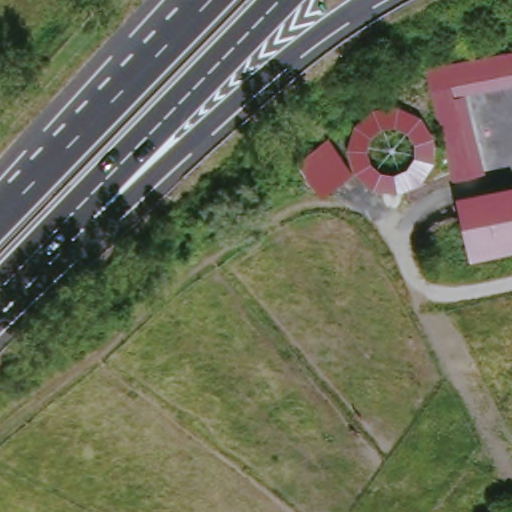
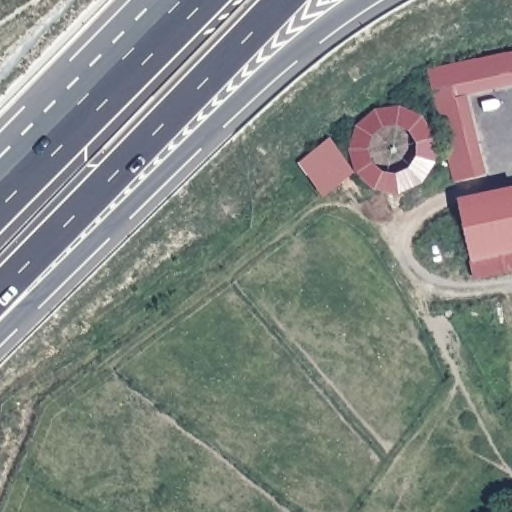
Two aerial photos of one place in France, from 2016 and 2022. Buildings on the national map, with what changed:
unchanged [(484,174),(451,181),(426,69),(512,50),(512,84),(465,93),(484,174)]
unchanged [(352,123),(375,107),(398,103),(420,115),(433,136),(435,160),(422,181),(398,192),(375,188),(356,172),(347,152),(352,123)]
unchanged [(353,173),(322,195),(296,161),(328,138),(353,173)]
unchanged [(463,217),(457,197),(512,185),(512,205),(463,217)]
unchanged [(463,217),(512,205),(512,251),(473,260),(463,217)]

